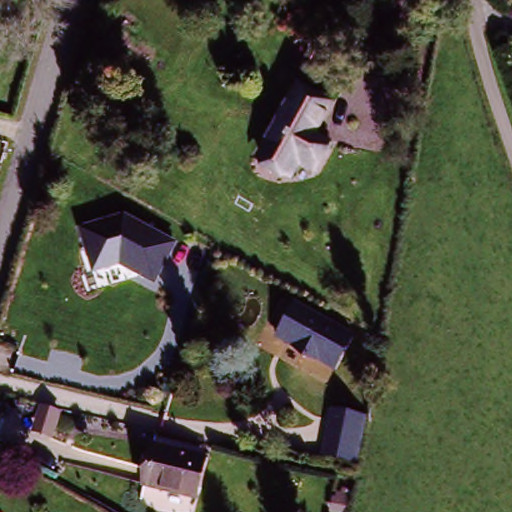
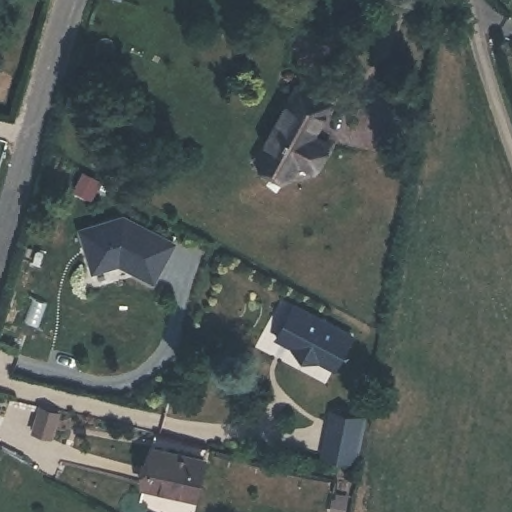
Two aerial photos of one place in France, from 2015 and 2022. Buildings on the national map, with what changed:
unchanged [(255,160),(297,88),(327,105),(310,134),(332,146),(315,177),(297,167),(289,179),(255,160)]
unchanged [(121,214),(175,245),(155,288),(118,268),(87,278),(73,229),(121,214)]
unchanged [(353,337),(335,373),(273,340),(292,304),(353,337)]
unchanged [(365,416),(356,464),(318,458),(327,409),(365,416)]
unchanged [(143,485),(149,448),(202,458),(195,495),(143,485)]

